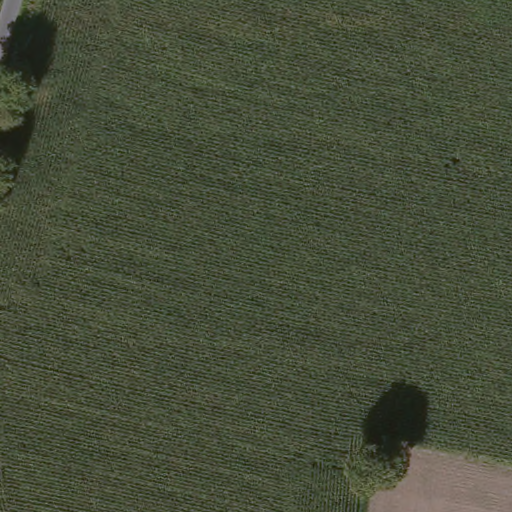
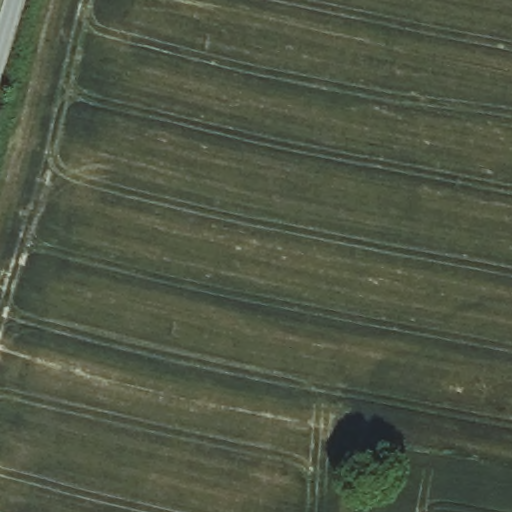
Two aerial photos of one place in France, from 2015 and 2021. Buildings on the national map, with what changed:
[]

